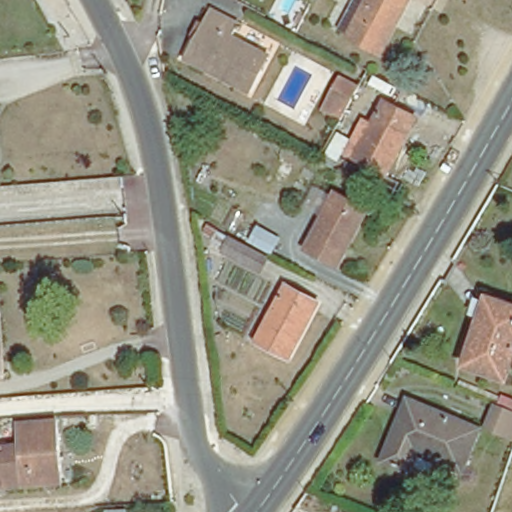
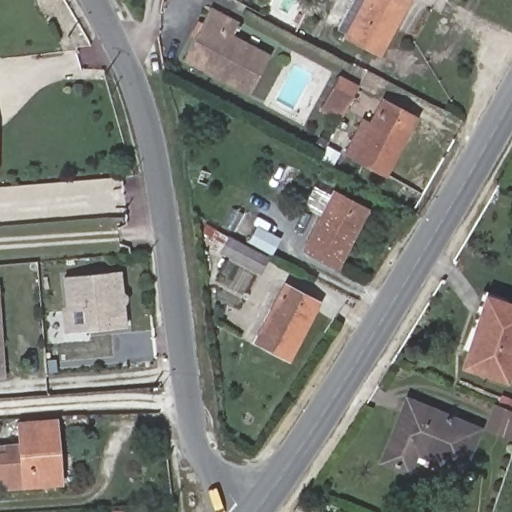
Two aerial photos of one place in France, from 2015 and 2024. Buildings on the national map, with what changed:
unchanged [(363,0),(407,0),(382,47),(347,30),(363,0)]
unchanged [(188,55),(213,6),(235,17),(228,30),(267,50),(249,86),(188,55)]
unchanged [(321,108),(326,100),(341,74),(360,84),(346,111),(341,119),(321,108)]
unchanged [(383,96),(413,112),(385,167),(355,152),(383,96)]
unchanged [(327,153),(337,133),(349,139),(340,159),(327,153)]
unchanged [(335,191),(367,208),(337,264),(306,247),(335,191)]
unchanged [(221,223),(230,207),(282,237),(273,252),(221,223)]
unchanged [(222,250),(230,235),(268,256),(261,271),(222,250)]
new [(65,332),(62,305),(67,305),(65,276),(121,271),(129,326),(65,332)]
unchanged [(287,285),(318,300),(288,357),(257,340),(287,285)]
unchanged [(466,370),(488,301),(512,309),(512,371),(507,385),(466,370)]
unchanged [(497,404),(500,405),(504,395),(512,398),(512,436),(488,426),(497,404)]
unchanged [(464,470),(418,451),(411,471),(383,460),(408,399),(481,428),(464,470)]
unchanged [(67,476),(17,479),(16,467),(0,468),(0,441),(27,439),(26,418),(62,415),(67,476)]
unchanged [(124,512),(106,512),(106,508),(124,507),(124,512)]

